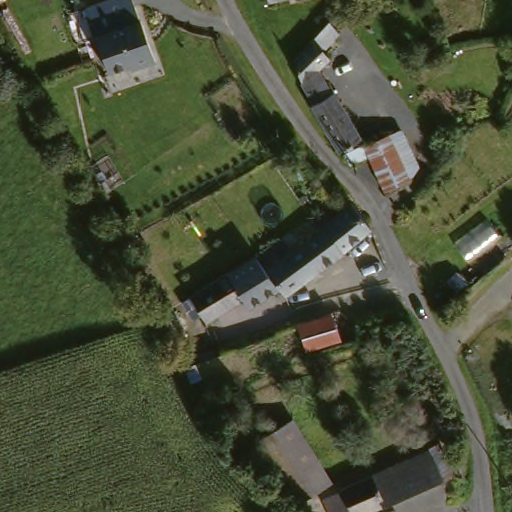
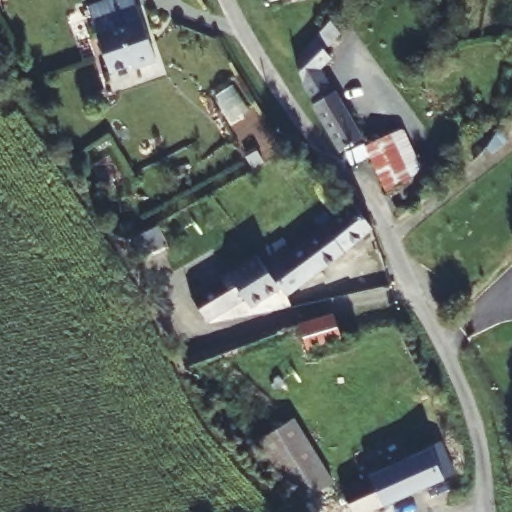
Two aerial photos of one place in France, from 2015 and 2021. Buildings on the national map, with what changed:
unchanged [(103,0),(140,0),(145,17),(146,17),(159,57),(135,65),(134,60),(113,67),(101,31),(102,31),(92,3),(103,0)]
unchanged [(268,0),(275,0),(269,1),(268,0)]
unchanged [(340,34),(329,49),(335,63),(323,73),(341,103),(324,112),(306,87),(294,65),(333,28),(340,34)]
unchanged [(324,112),(341,103),(343,102),(364,141),(345,153),(322,113),(324,112)]
unchanged [(379,170),(373,159),(357,168),(350,157),(367,147),(368,149),(399,132),(411,127),(433,172),(418,178),(388,193),(379,170)]
unchanged [(295,245),(301,241),(321,230),(322,229),(317,221),(329,214),(334,222),(335,221),(345,215),(350,212),(357,207),(370,228),(374,236),(348,253),(336,261),(316,272),(280,295),(276,288),(262,265),(295,245)]
unchanged [(262,265),(276,288),(249,305),(244,296),(209,317),(189,293),(227,272),(253,254),(255,253),(262,265)]
unchanged [(338,320),(340,337),(338,347),(302,351),(301,334),(300,324),(338,320)]
unchanged [(335,483),(296,507),(257,442),(299,420),(335,483)]
unchanged [(351,512),(344,490),(400,472),(446,457),(459,486),(374,512),(351,512)]

